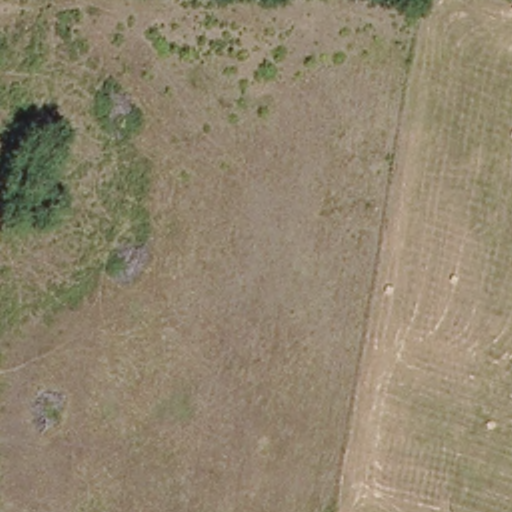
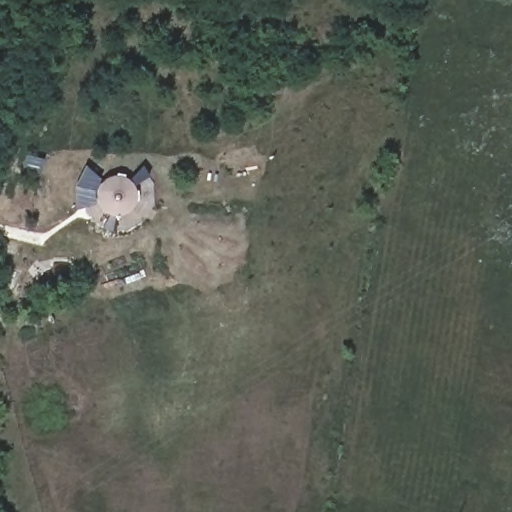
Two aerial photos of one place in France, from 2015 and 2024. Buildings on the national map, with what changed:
new [(135,202),(133,208),(128,212),(122,215),(116,216),(115,216),(113,230),(101,227),(106,214),(104,213),(99,208),(96,203),(76,209),(74,184),(85,164),(102,180),(104,179),(109,176),(115,175),(122,176),(128,179),(141,165),(148,175),(133,184),(135,189),(136,195),(135,202)]

